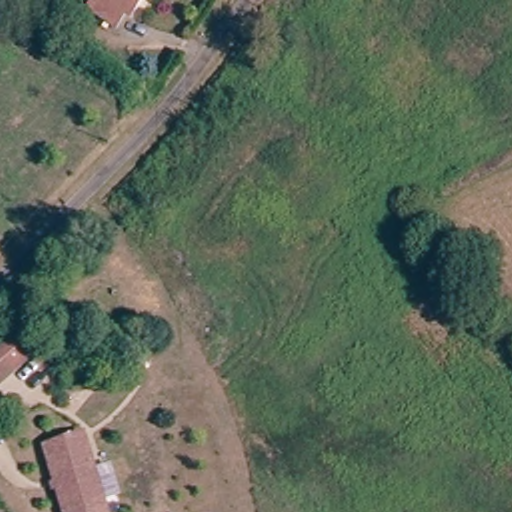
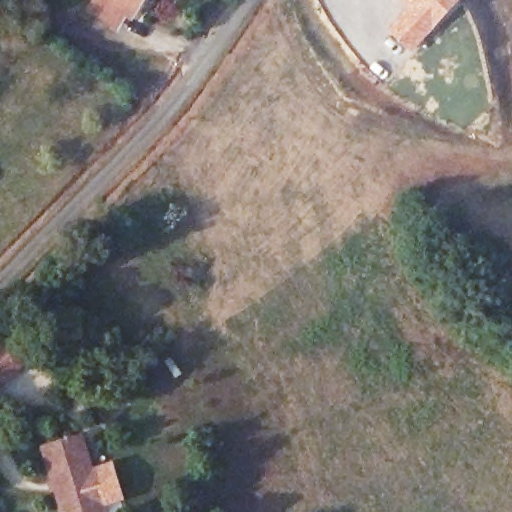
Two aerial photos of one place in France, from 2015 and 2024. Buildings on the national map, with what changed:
unchanged [(119,12),(109,23),(89,4),(92,0),(141,0),(126,17),(119,12)]
new [(385,30),(405,8),(397,0),(464,0),(411,55),(385,30)]
unchanged [(0,395),(0,353),(8,344),(28,363),(0,395)]
unchanged [(107,505),(110,512),(69,512),(49,448),(86,436),(107,505)]

